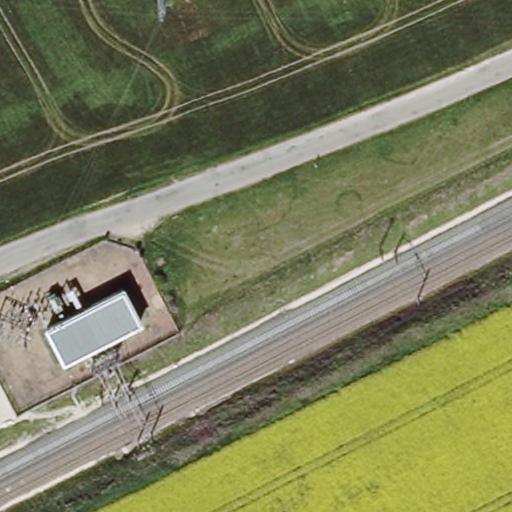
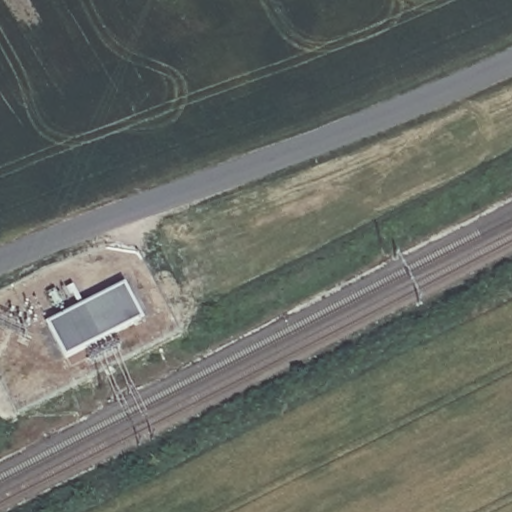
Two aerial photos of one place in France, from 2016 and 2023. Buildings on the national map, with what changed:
unchanged [(121,288),(139,322),(65,362),(46,328),(121,288)]

